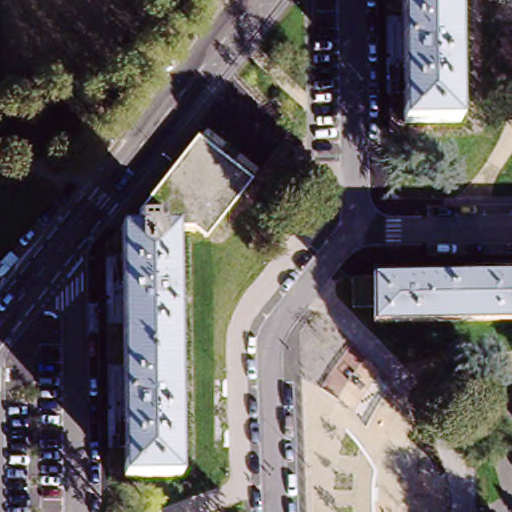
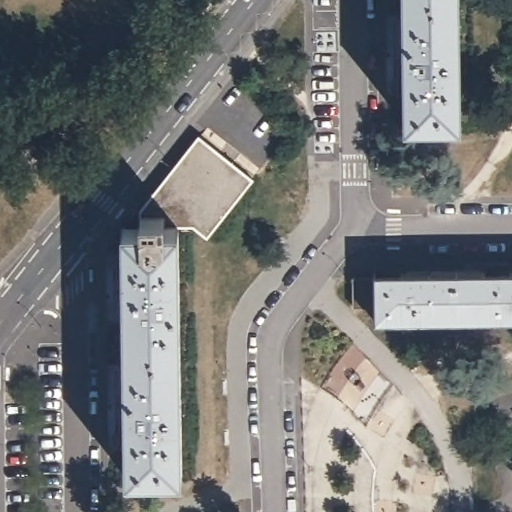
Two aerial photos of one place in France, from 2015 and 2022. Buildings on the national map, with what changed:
unchanged [(406,126),(406,122),(403,0),(459,0),(461,125),(406,126)]
unchanged [(139,214),(198,138),(254,180),(209,239),(194,227),(179,227),(139,227),(139,214)]
unchanged [(139,227),(179,227),(183,477),(125,477),(125,467),(121,227),(139,227)]
unchanged [(464,271),(512,271),(512,320),(379,322),(379,305),(358,306),(358,280),(358,276),(379,276),(379,272),(464,271)]

